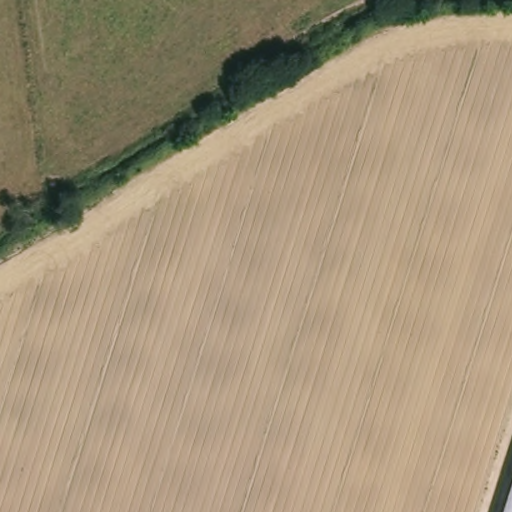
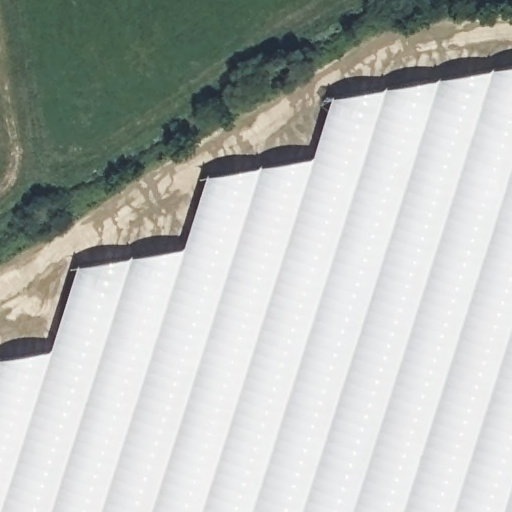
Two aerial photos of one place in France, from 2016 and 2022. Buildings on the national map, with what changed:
new [(0,512),(0,359),(52,350),(80,265),(186,247),(208,175),(316,157),(335,97),(512,66),(512,488),(504,512),(0,512)]
unchanged [(512,512),(504,512),(512,488),(512,512)]

